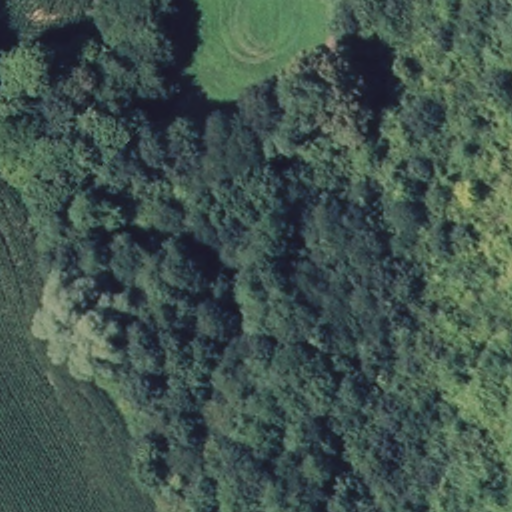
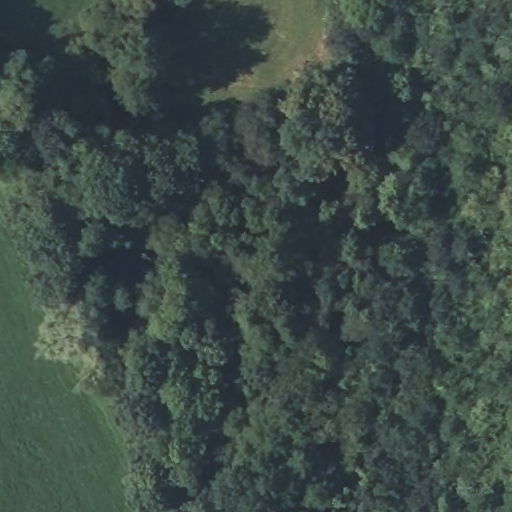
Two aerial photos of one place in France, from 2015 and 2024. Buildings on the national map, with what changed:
unchanged [(99,169),(107,187),(95,194),(85,176),(99,169)]

